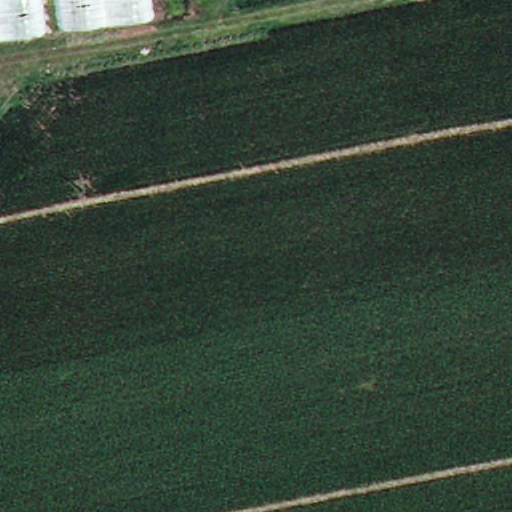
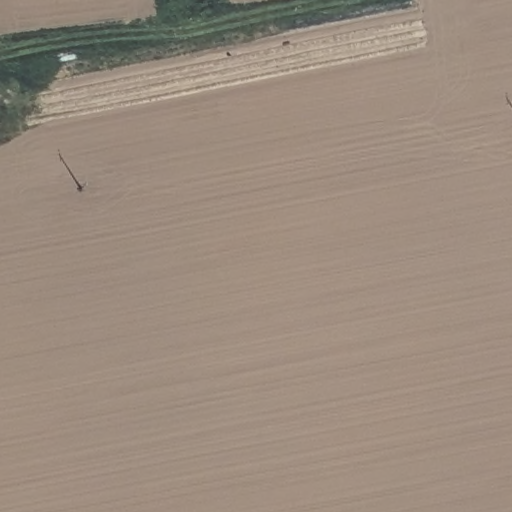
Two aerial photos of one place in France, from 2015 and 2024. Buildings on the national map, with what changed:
demolished [(34,25),(0,31),(0,0),(31,0),(34,25)]
demolished [(52,24),(48,0),(138,0),(140,13),(52,24)]

